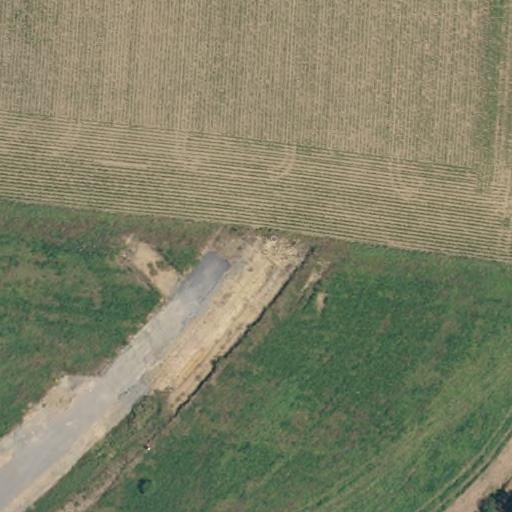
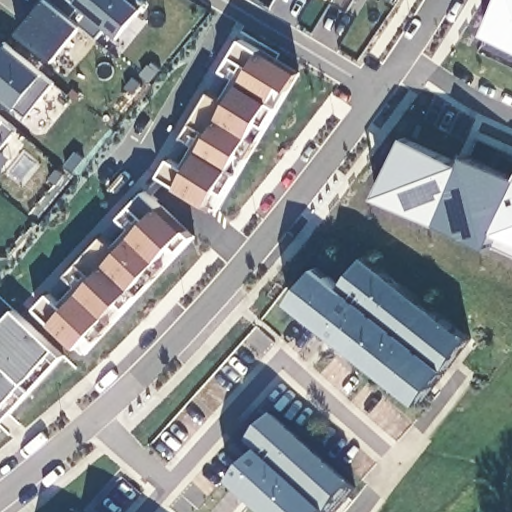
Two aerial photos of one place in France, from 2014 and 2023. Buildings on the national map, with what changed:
new [(72,0),(75,2),(78,0),(143,0),(145,1),(142,7),(120,37),(106,26),(96,37),(82,26),(54,62),(19,34),(45,0),(72,0)]
new [(333,1),(334,0),(354,0),(348,11),(333,1)]
new [(512,0),(512,44),(489,34),(503,0),(512,0)]
new [(300,73),(227,194),(219,188),(208,204),(179,186),(161,175),(171,159),(185,166),(196,146),(183,138),(210,90),(223,98),(235,77),(224,71),(242,40),(300,73)]
new [(52,82),(27,117),(17,107),(5,99),(0,104),(0,55),(7,45),(42,75),(52,82)]
new [(9,121),(5,125),(15,134),(5,147),(0,145),(0,113),(9,121)]
new [(38,307),(51,293),(60,302),(77,285),(68,275),(103,237),(112,245),(130,227),(121,219),(146,191),(193,237),(97,340),(86,352),(79,345),(38,307)]
new [(419,404),(288,302),(317,268),(340,287),(364,256),(469,338),(419,404)]
new [(13,310),(56,349),(0,409),(0,324),(13,310)]
new [(56,349),(63,355),(0,424),(0,409),(56,349)]
new [(354,487),(333,512),(258,512),(231,487),(261,455),(249,445),(275,416),(354,487)]

